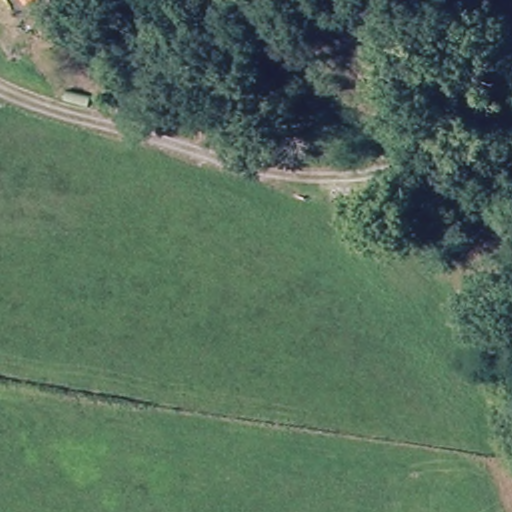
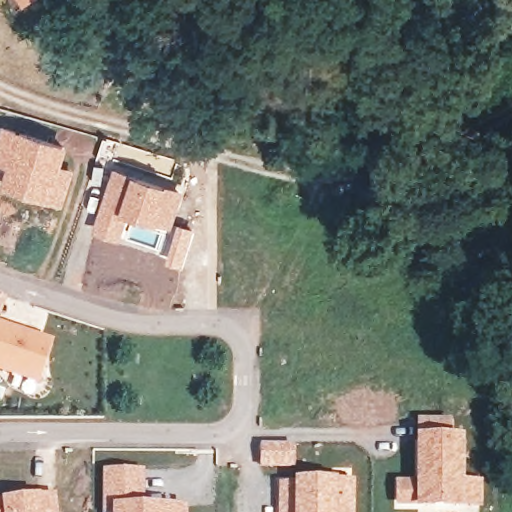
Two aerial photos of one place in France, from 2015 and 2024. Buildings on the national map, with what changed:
new [(68,144),(61,164),(74,169),(63,203),(1,182),(7,164),(0,161),(0,129),(3,122),(68,144)]
new [(114,167),(149,178),(184,192),(174,224),(176,225),(175,227),(129,213),(119,239),(92,229),(114,167)]
new [(178,222),(194,229),(183,265),(166,258),(178,222)]
new [(0,321),(0,296),(9,300),(0,321)]
new [(9,300),(48,312),(40,332),(11,319),(15,310),(6,306),(9,300)]
new [(36,384),(0,372),(0,323),(51,343),(36,384)]
new [(413,478),(414,436),(414,417),(452,418),(452,436),(463,436),(464,478),(482,478),(482,506),(445,507),(393,506),(393,479),(413,478)]
new [(259,442),(294,443),(294,468),(258,467),(259,442)]
new [(143,470),(144,505),(187,508),(186,512),(101,512),(101,469),(143,470)]
new [(309,478),(354,481),(354,512),(276,512),(277,480),(309,478)]
new [(57,512),(0,512),(0,499),(55,495),(57,512)]

